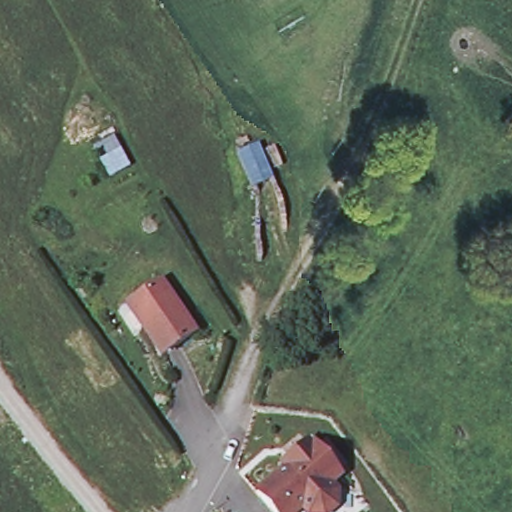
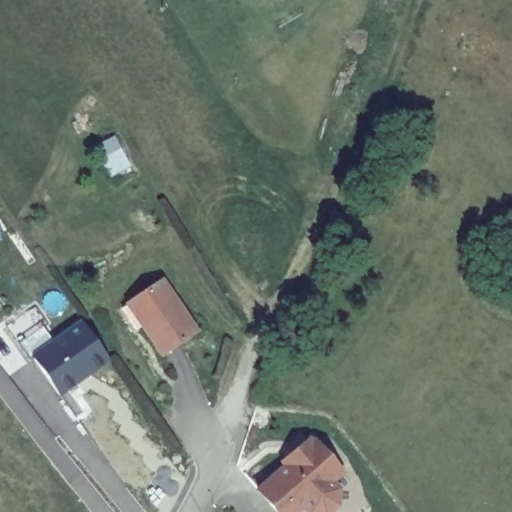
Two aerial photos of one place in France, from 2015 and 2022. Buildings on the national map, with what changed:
unchanged [(157,279),(160,277),(194,328),(189,332),(159,351),(139,322),(144,318),(129,297),(157,279)]
new [(110,361),(59,397),(30,357),(80,320),(110,361)]
unchanged [(291,462),(287,458),(314,437),(317,441),(320,439),(321,438),(345,470),(346,471),(337,477),(335,479),(341,487),(340,503),(329,512),(324,512),(312,511),(307,504),(306,502),(295,512),(283,512),(271,497),(262,486),(291,462)]

